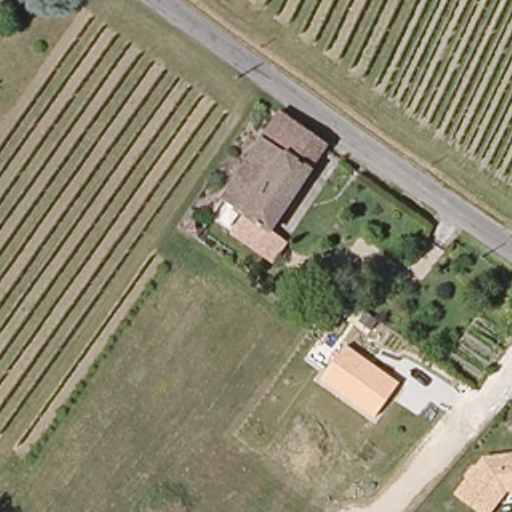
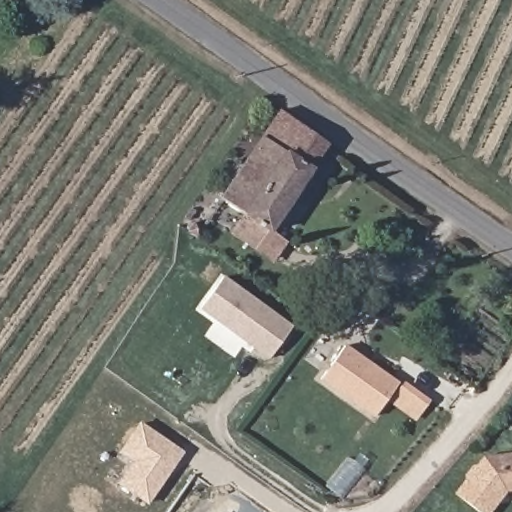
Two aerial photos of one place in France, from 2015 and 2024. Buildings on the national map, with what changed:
unchanged [(277,112),(279,109),(328,141),(325,146),(268,230),(265,234),(241,218),(217,202),(277,112)]
unchanged [(241,218),(265,234),(268,230),(288,242),(272,263),(231,234),(241,218)]
new [(292,325),(267,360),(199,310),(224,276),(292,325)]
unchanged [(375,418),(323,379),(345,346),(398,383),(375,418)]
new [(415,421),(390,402),(405,381),(431,400),(415,421)]
new [(147,505),(117,482),(132,461),(119,452),(140,422),(184,452),(147,505)]
unchanged [(505,495),(494,512),(474,512),(455,496),(482,457),(512,454),(512,494),(505,495)]

